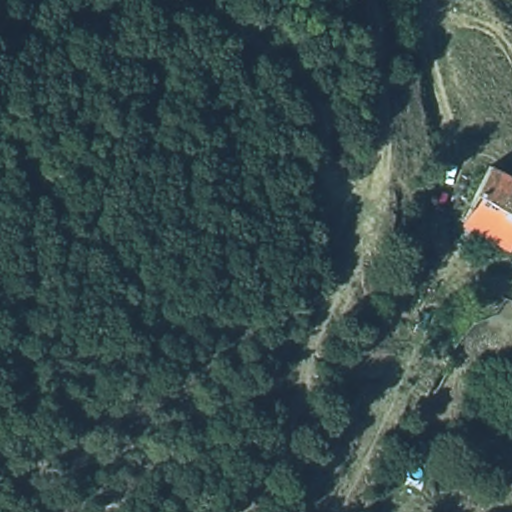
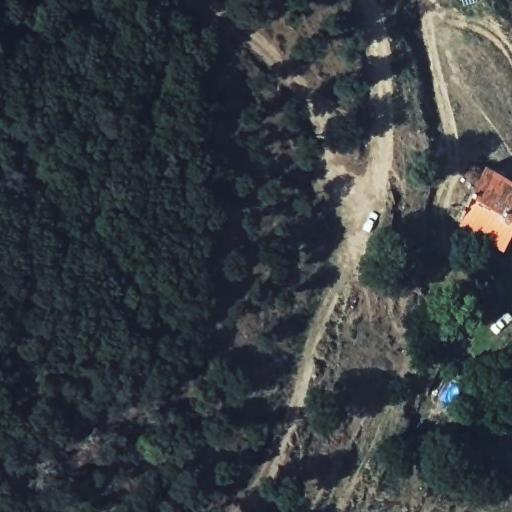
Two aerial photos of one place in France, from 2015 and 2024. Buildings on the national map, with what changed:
unchanged [(512,186),(512,246),(509,252),(461,229),(487,175),(512,186)]

